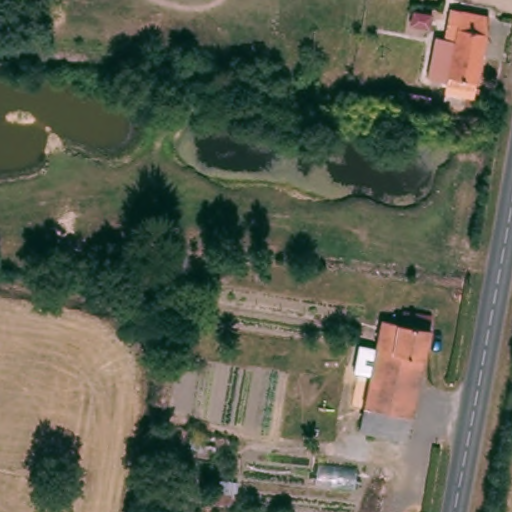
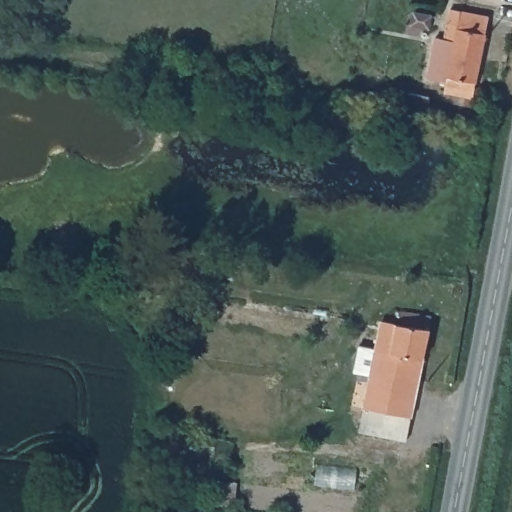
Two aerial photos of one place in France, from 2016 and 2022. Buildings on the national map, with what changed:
unchanged [(449,32),(451,10),(483,14),(475,100),(460,99),(459,111),(439,109),(446,57),(434,56),(437,31),(449,32)]
unchanged [(436,318),(407,439),(360,428),(389,307),(436,318)]

